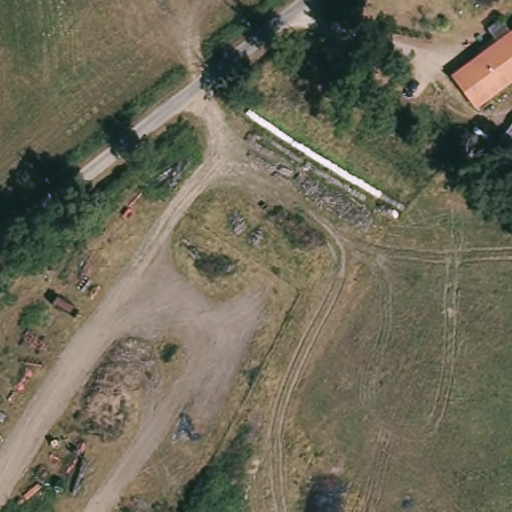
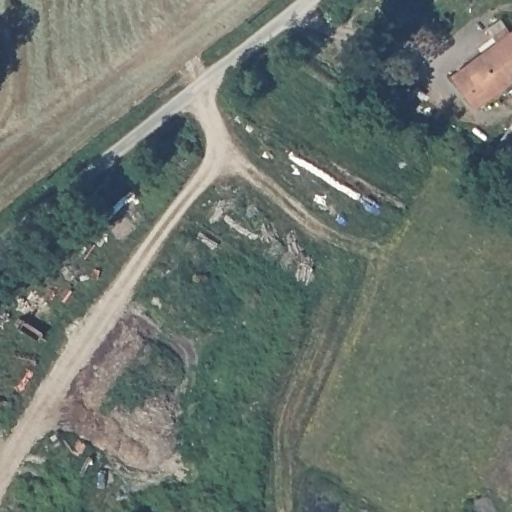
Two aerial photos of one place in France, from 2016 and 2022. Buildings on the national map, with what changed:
unchanged [(499,21),(508,33),(512,30),(512,84),(477,110),(452,75),(491,47),(481,34),(499,21)]

